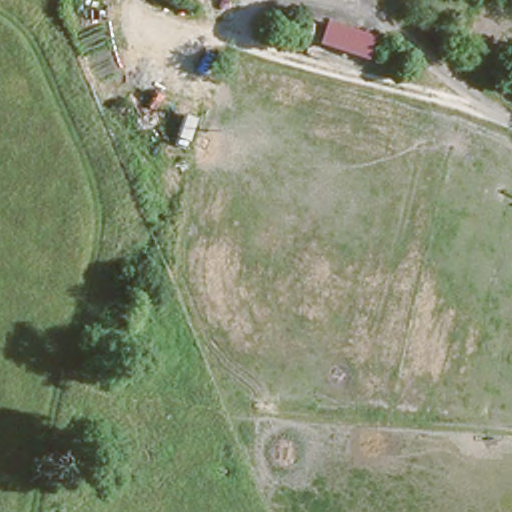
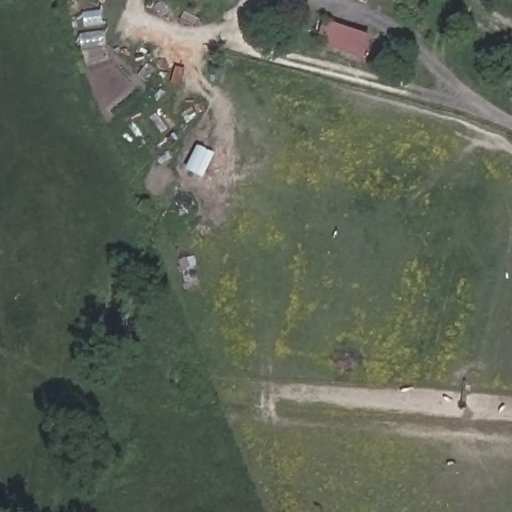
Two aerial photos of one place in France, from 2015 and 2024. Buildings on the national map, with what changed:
unchanged [(192,6),(174,0),(194,0),(192,6)]

